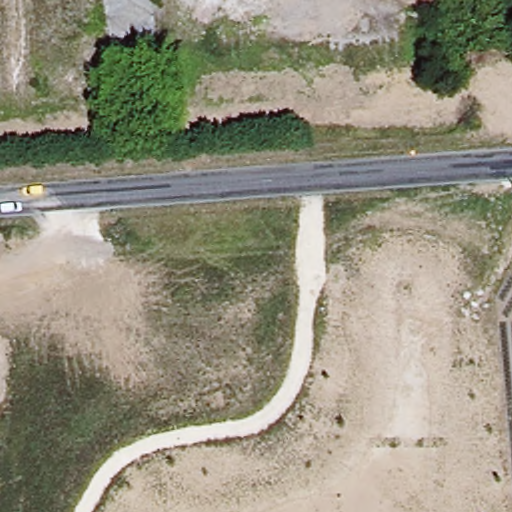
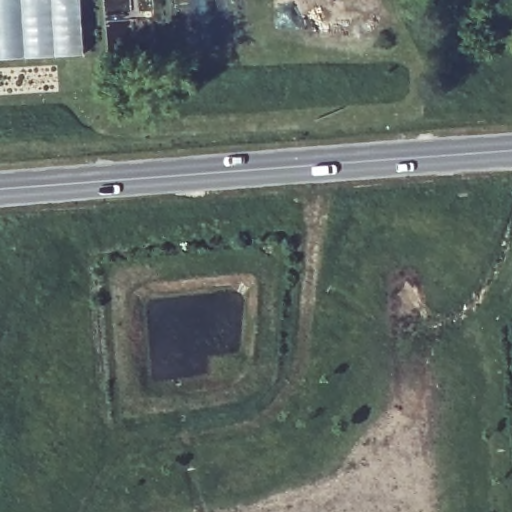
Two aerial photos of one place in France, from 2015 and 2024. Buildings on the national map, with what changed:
new [(21,18),(26,55),(0,57),(0,0),(20,0),(21,18)]
new [(84,51),(26,55),(21,18),(20,0),(81,0),(84,51)]
new [(133,11),(104,16),(102,0),(132,0),(133,11)]

